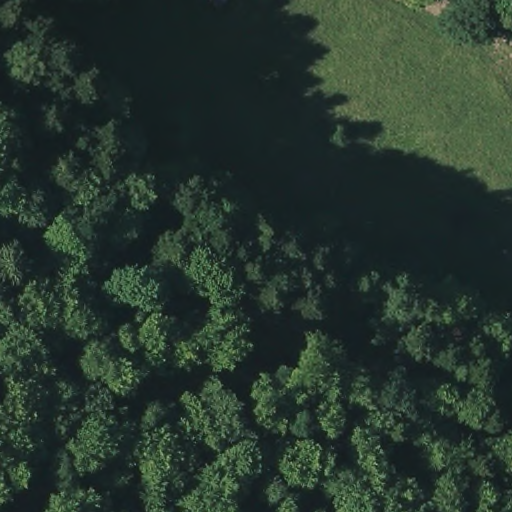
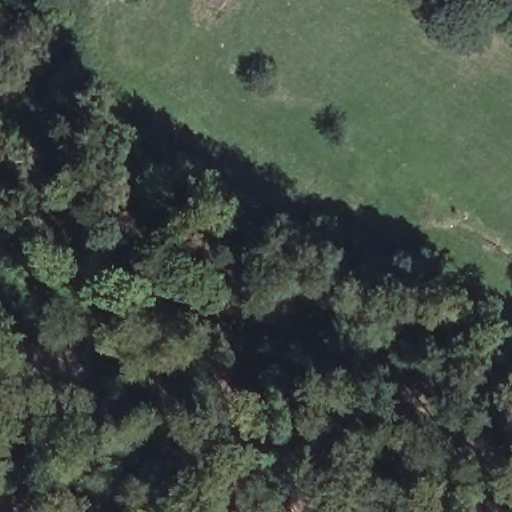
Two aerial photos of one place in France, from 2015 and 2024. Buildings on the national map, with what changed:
unchanged [(204,0),(231,0),(221,12),(204,0)]

